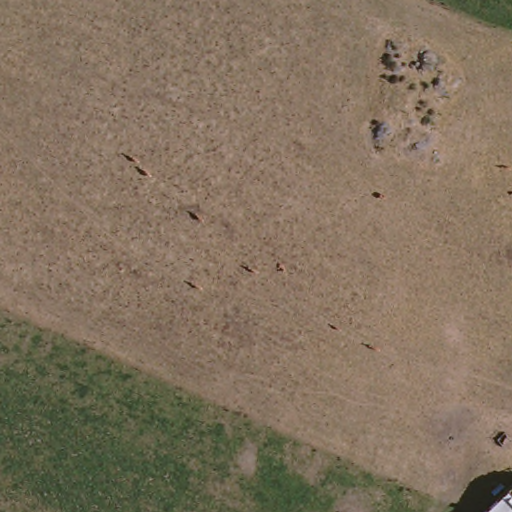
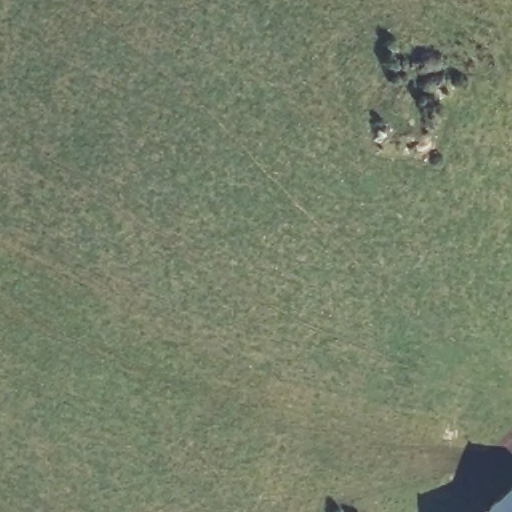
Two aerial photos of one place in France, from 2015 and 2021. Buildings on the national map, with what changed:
unchanged [(512,478),(512,512),(478,512),(512,478)]

